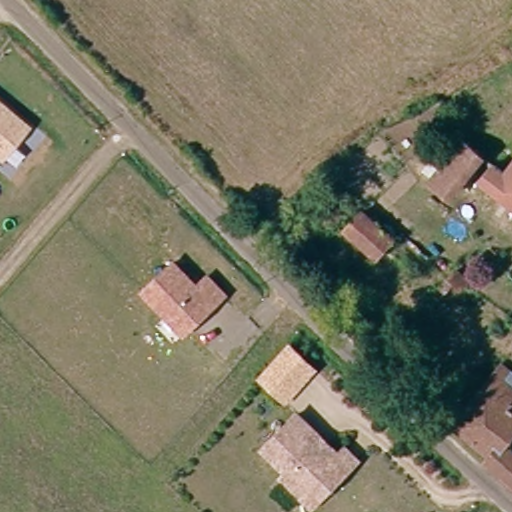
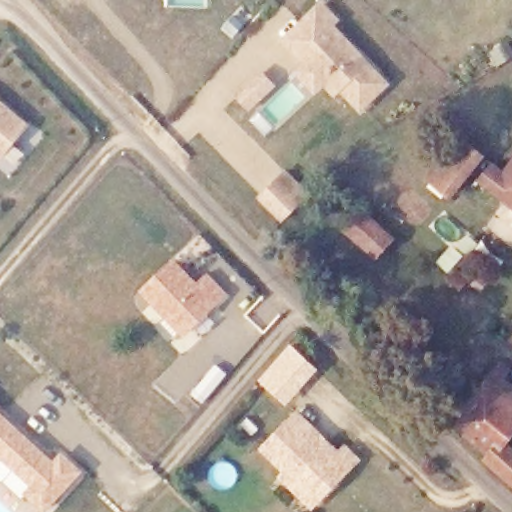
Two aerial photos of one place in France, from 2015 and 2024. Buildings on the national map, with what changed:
new [(325,87),(317,95),(294,73),(304,63),(280,40),(322,2),(340,22),(336,27),(390,82),(360,112),(341,92),(334,97),(325,87)]
new [(235,94),(261,68),(276,85),(250,111),(235,94)]
unchanged [(0,157),(0,104),(26,127),(0,157)]
unchanged [(421,175),(427,166),(435,172),(461,140),(500,172),(512,157),(512,209),(478,182),(458,207),(421,175)]
new [(257,197),(285,169),(310,193),(281,222),(257,197)]
unchanged [(389,237),(372,257),(345,232),(361,213),(389,237)]
unchanged [(158,304),(190,275),(214,301),(224,291),(239,308),(229,318),(198,347),(158,304)]
unchanged [(471,290),(477,282),(486,292),(481,300),(471,290)]
unchanged [(288,348),(313,371),(283,404),(258,382),(288,348)]
unchanged [(485,461),(489,455),(452,417),(495,371),(512,386),(512,433),(502,444),(512,454),(512,488),(485,461)]
new [(63,452),(83,472),(45,512),(24,492),(30,486),(0,459),(0,412),(55,461),(63,452)]
unchanged [(302,498),(285,481),(289,476),(266,452),(301,417),(323,439),(322,444),(328,448),(331,446),(342,457),(347,451),(360,464),(324,501),(315,511),(302,498)]

